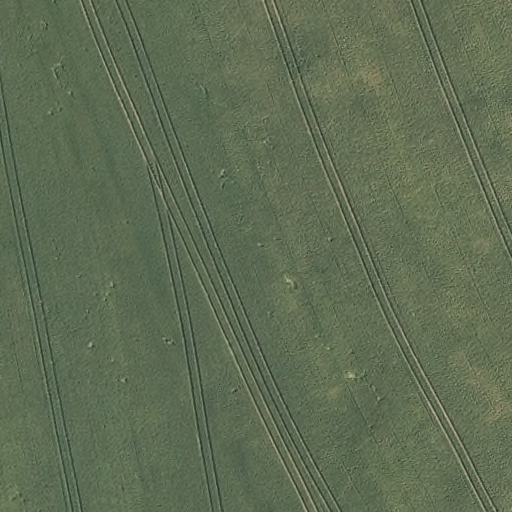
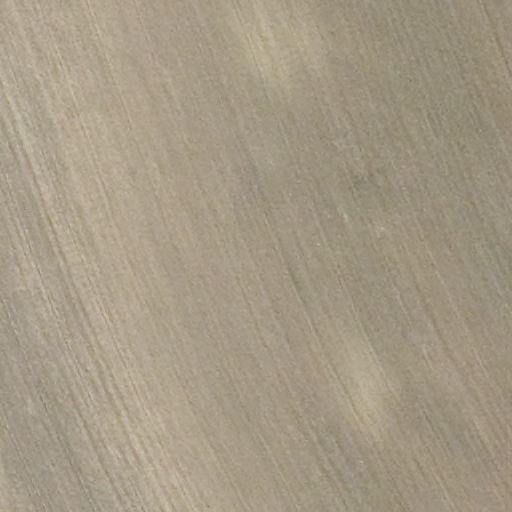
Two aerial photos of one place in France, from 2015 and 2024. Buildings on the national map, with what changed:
[]

